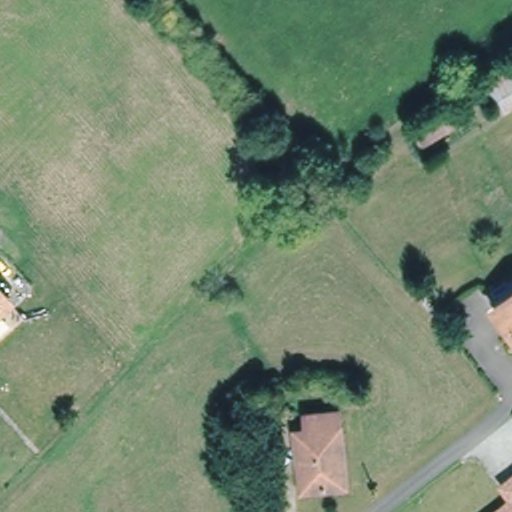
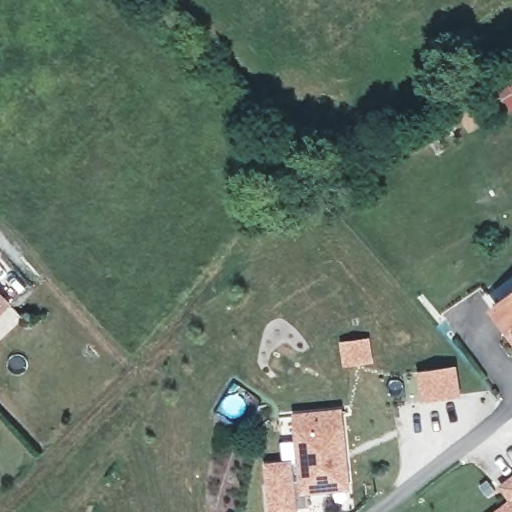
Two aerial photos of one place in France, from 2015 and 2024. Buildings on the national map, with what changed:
unchanged [(0,306),(0,287),(10,297),(0,306)]
unchanged [(0,306),(10,297),(23,312),(0,334),(0,306)]
unchanged [(512,302),(512,323),(502,310),(512,302)]
new [(339,340),(371,335),(374,363),(343,367),(339,340)]
new [(462,395),(422,402),(418,372),(458,365),(462,395)]
unchanged [(312,428),(312,412),(345,409),(351,483),(337,485),(337,490),(312,493),(308,464),(303,465),(301,430),(312,428)]
new [(312,428),(301,430),(303,465),(308,464),(312,493),(307,493),(307,506),(297,507),(297,512),(270,512),(265,462),(296,458),(292,414),(312,412),(312,428)]
unchanged [(507,485),(512,482),(512,493),(507,485)]
unchanged [(512,503),(512,512),(499,512),(512,503)]

